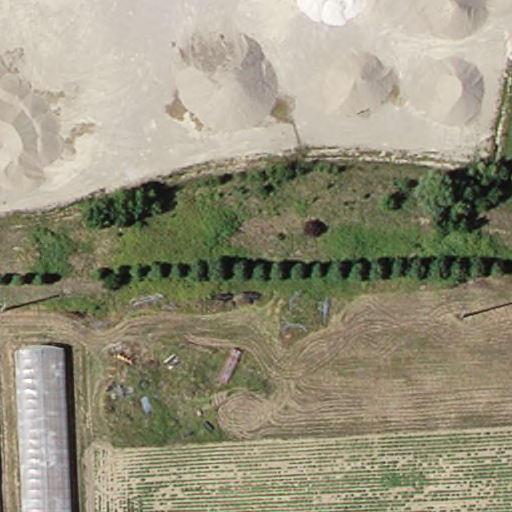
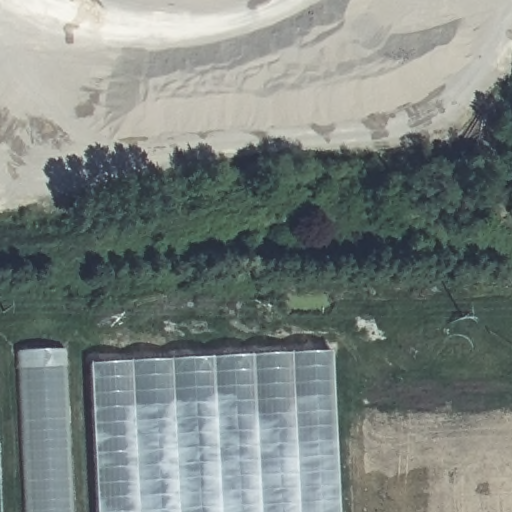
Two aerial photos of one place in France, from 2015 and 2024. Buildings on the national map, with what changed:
unchanged [(65,347),(73,512),(27,512),(19,349),(65,347)]
new [(95,512),(88,364),(329,352),(337,512),(95,512)]

